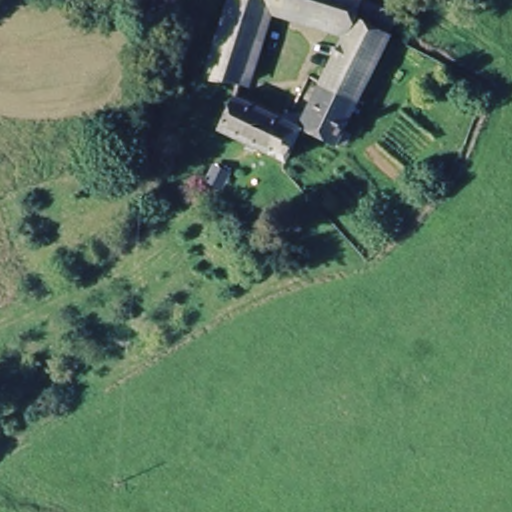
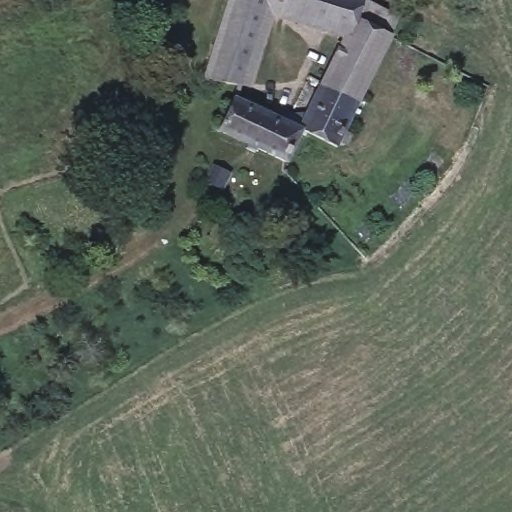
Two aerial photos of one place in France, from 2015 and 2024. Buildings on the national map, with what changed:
unchanged [(391,36),(346,129),(352,136),(345,145),(340,141),(337,149),(302,133),(286,166),(220,135),(237,100),(284,124),(288,113),(307,120),(348,35),(275,17),(250,90),(204,82),(232,0),(365,0),(357,18),(391,36)]

